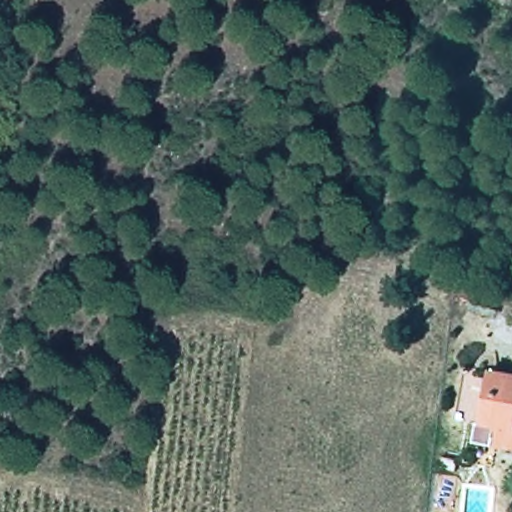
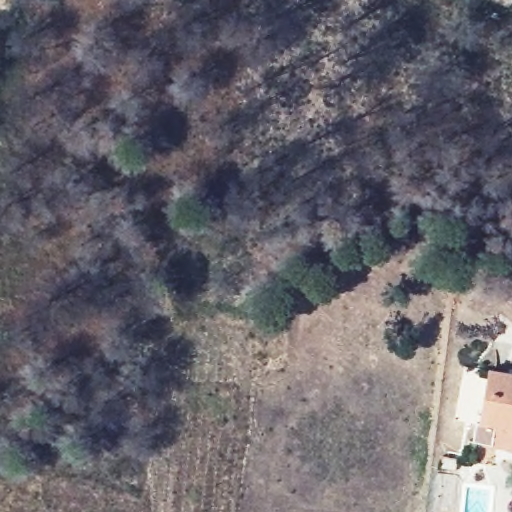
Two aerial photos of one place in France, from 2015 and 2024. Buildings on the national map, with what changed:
unchanged [(512,454),(490,449),(491,443),(469,438),(473,422),(479,423),(488,378),(483,377),(485,367),(512,373),(512,454)]

